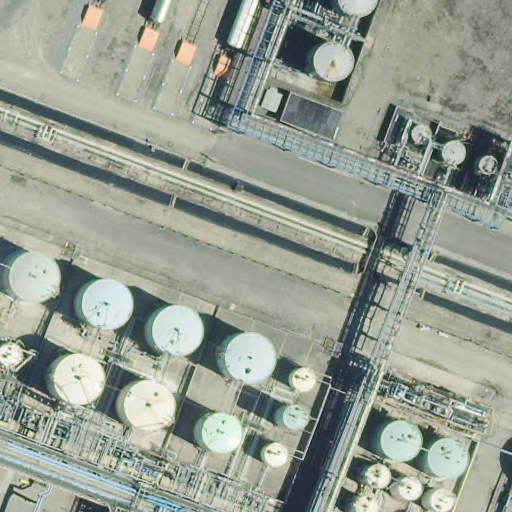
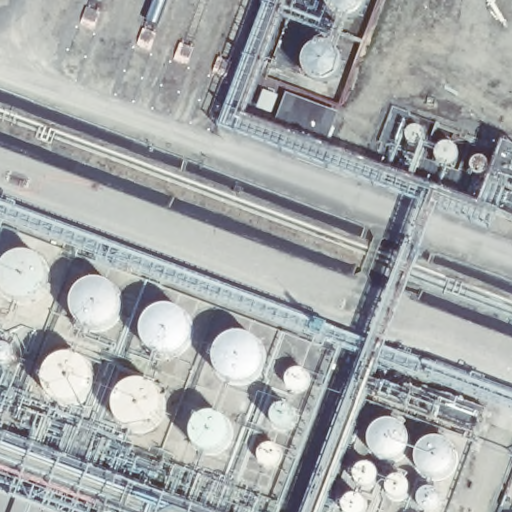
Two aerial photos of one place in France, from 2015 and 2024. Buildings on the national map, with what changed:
unchanged [(100,507),(114,512),(98,512),(100,507)]

